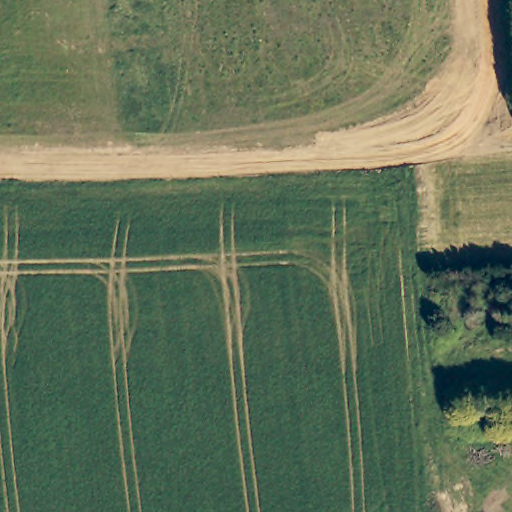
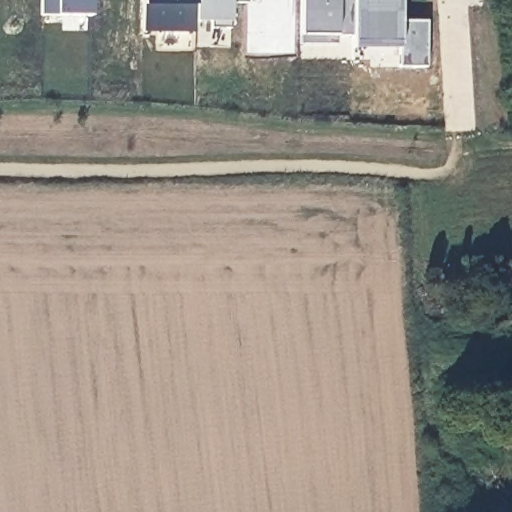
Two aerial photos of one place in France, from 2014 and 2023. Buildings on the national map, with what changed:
new [(91,17),(40,16),(40,0),(91,0),(91,17)]
new [(195,32),(142,31),(142,0),(195,0),(195,32)]
new [(247,4),(231,4),(230,29),(210,29),(211,22),(195,22),(195,0),(247,0),(247,4)]
new [(352,39),(336,39),(336,47),(300,46),(300,0),(353,0),(352,39)]
new [(400,22),(427,23),(426,69),(399,69),(399,44),(352,44),(352,0),(400,0),(400,22)]

